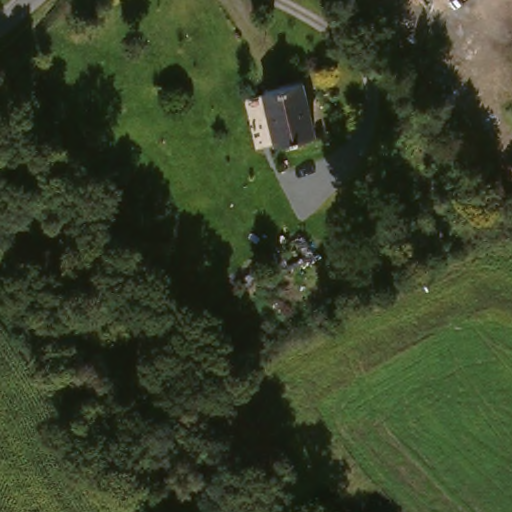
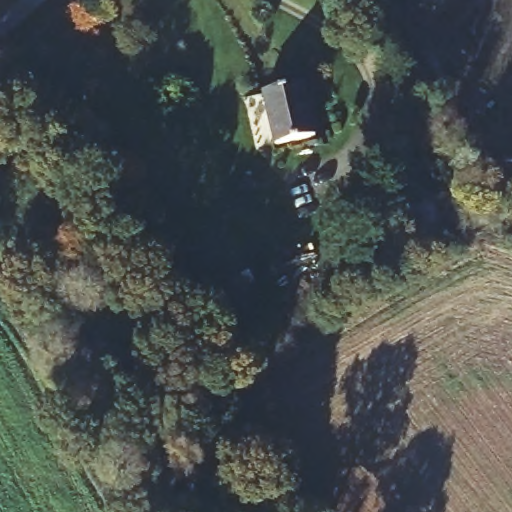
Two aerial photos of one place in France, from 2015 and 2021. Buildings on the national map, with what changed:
unchanged [(314,129),(274,139),(260,85),(301,77),(314,129)]

